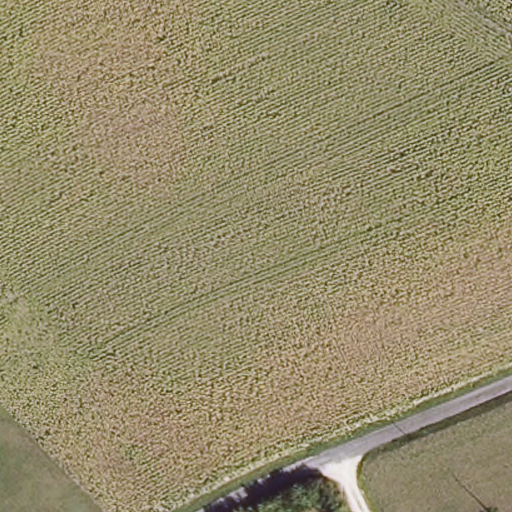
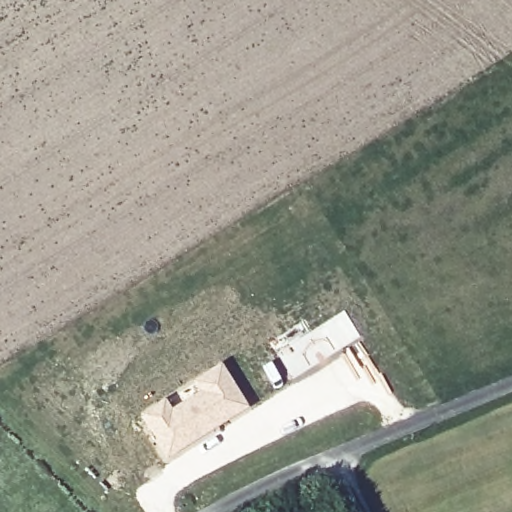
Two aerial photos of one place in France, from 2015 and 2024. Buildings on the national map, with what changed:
new [(165,399),(172,408),(180,402),(174,393),(220,364),(250,409),(169,463),(139,417),(165,399)]

